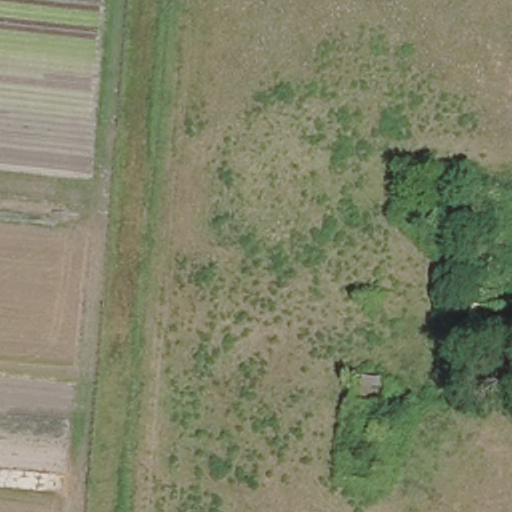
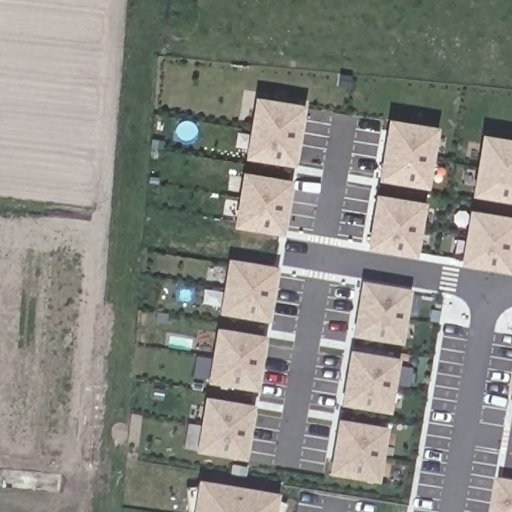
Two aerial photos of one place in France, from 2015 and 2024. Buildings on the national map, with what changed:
new [(254,94),(304,101),(295,163),(243,156),(254,94)]
new [(387,116),(438,124),(428,187),(377,178),(387,116)]
new [(481,131),(512,136),(512,200),(470,194),(481,131)]
new [(241,169),(292,177),(283,233),(232,224),(241,169)]
new [(426,200),(417,255),(365,247),(375,191),(426,200)]
new [(467,207),(512,214),(512,256),(510,271),(458,262),(467,207)]
new [(226,261),(277,269),(267,325),(217,316),(226,261)]
new [(359,282),(410,291),(401,347),(350,339),(359,282)]
new [(216,329),(266,338),(256,393),(206,386),(216,329)]
new [(348,351),(398,360),(390,416),(338,407),(348,351)]
new [(254,407),(245,463),(195,454),(204,398),(254,407)]
new [(387,429),(377,485),(327,476),(336,420),(387,429)]
new [(196,481),(278,495),(275,512),(190,512),(196,481)]
new [(498,481),(512,483),(512,512),(494,512),(498,481)]

